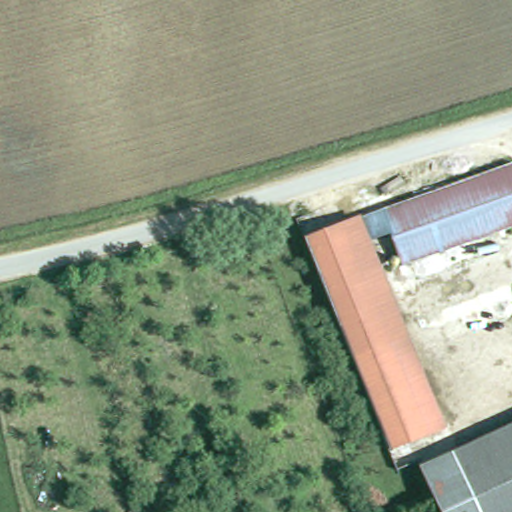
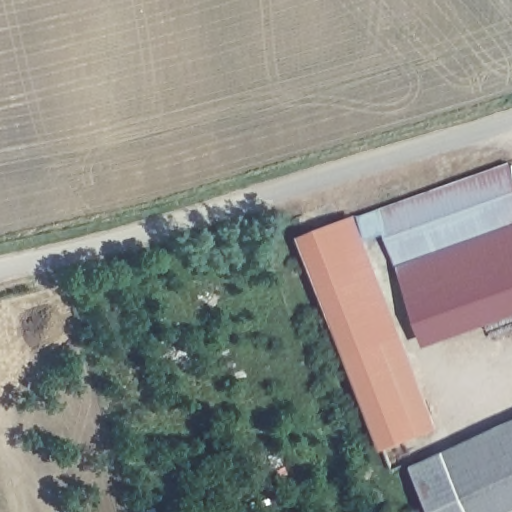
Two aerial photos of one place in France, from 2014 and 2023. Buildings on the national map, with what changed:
unchanged [(512,166),(512,228),(400,267),(388,234),(368,240),(360,219),(512,166)]
unchanged [(360,219),(368,240),(444,428),(423,436),(387,451),(302,242),(337,227),(360,219)]
new [(429,348),(400,267),(512,228),(512,319),(429,348)]
unchanged [(452,459),(512,432),(512,512),(475,512),(452,459)]
unchanged [(420,472),(452,459),(475,512),(435,512),(420,472)]

